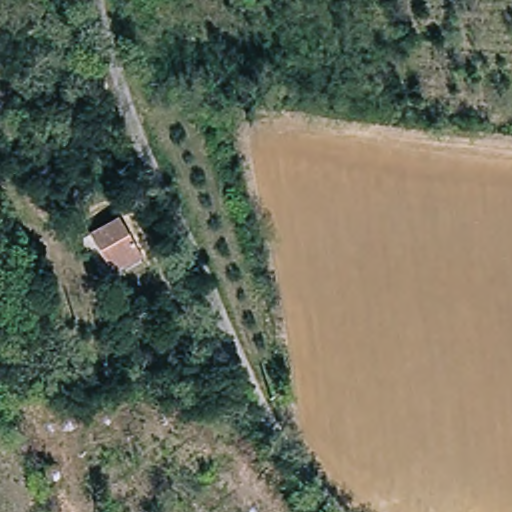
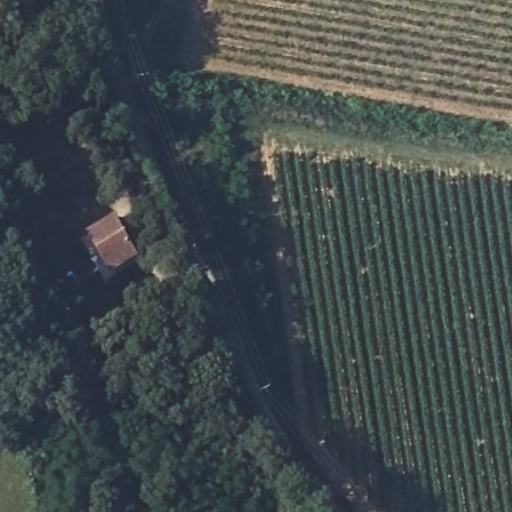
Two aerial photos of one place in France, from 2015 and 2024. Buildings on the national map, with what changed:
unchanged [(141,265),(110,275),(94,230),(126,220),(141,265)]

